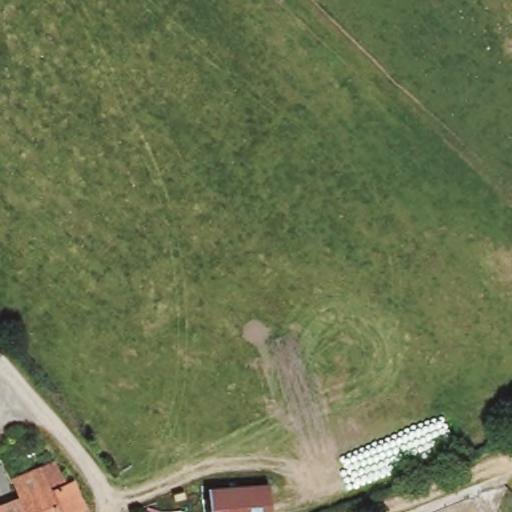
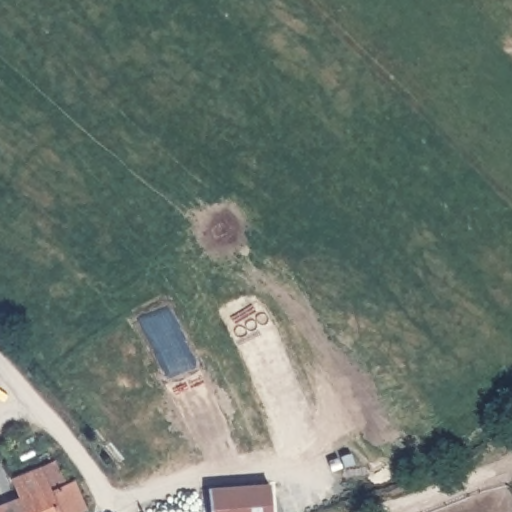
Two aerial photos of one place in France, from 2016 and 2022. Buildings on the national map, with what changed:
unchanged [(77,512),(24,512),(20,502),(16,494),(12,486),(56,465),(62,474),(67,486),(73,484),(86,508),(77,512)]
unchanged [(268,489),(270,512),(211,512),(210,493),(268,489)]
unchanged [(20,502),(24,512),(0,512),(0,511),(20,502)]

